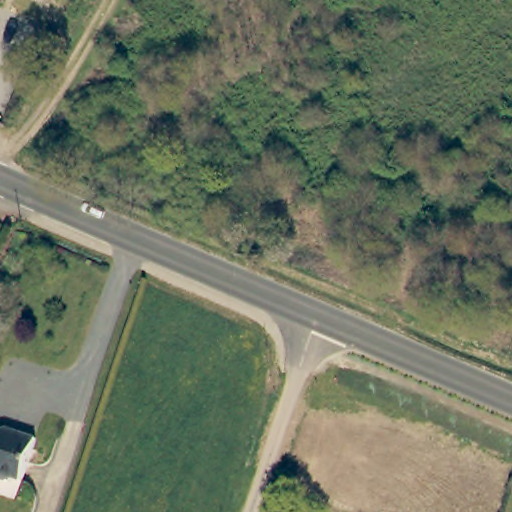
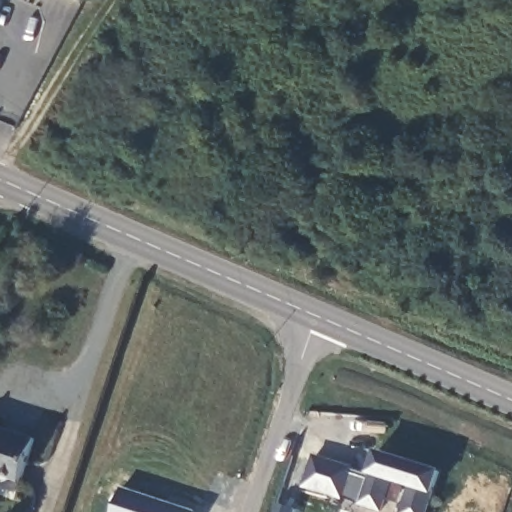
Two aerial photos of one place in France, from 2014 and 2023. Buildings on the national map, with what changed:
unchanged [(16,483),(11,485),(6,486),(1,485),(0,485),(0,436),(12,440),(14,435),(34,442),(20,485),(16,483)]
new [(352,469),(363,472),(367,473),(375,449),(441,470),(434,492),(433,492),(427,512),(401,512),(403,503),(387,498),(383,512),(381,512),(360,505),(361,501),(345,496),(343,499),(303,486),(313,454),(353,466),(352,469)]

